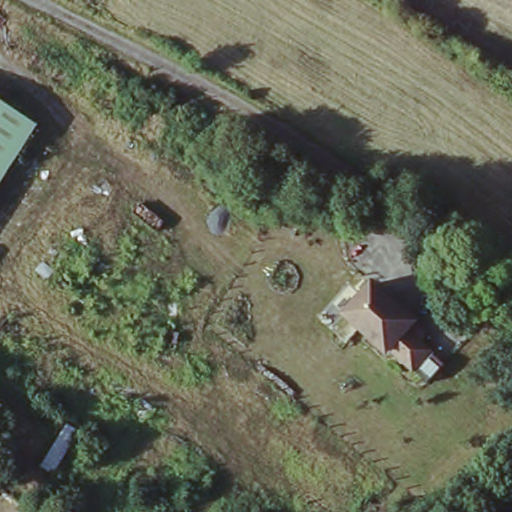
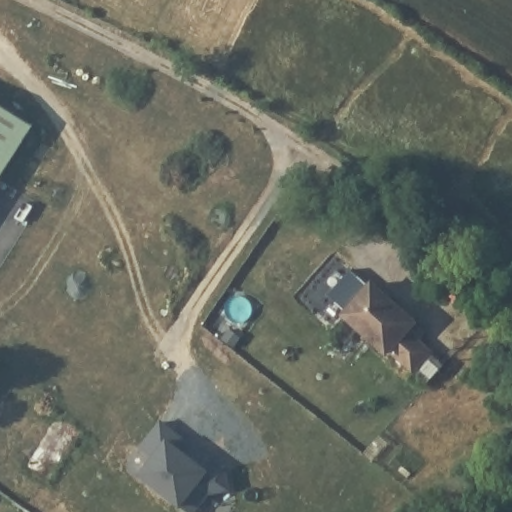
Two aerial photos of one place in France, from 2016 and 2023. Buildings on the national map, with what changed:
unchanged [(34,127),(0,181),(0,105),(34,127)]
unchanged [(375,283),(428,330),(422,339),(433,351),(414,375),(396,358),(390,365),(346,319),(375,283)]
new [(188,440),(177,452),(206,474),(226,470),(229,491),(214,493),(197,512),(188,512),(141,477),(154,460),(140,448),(162,422),(188,440)]

